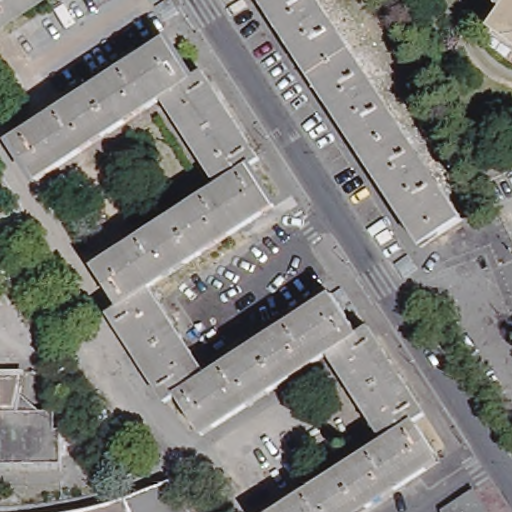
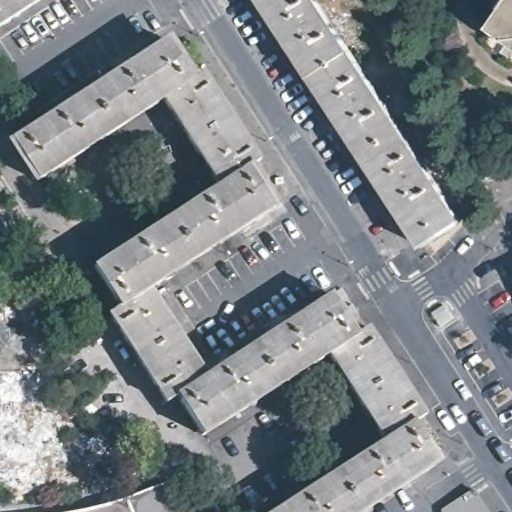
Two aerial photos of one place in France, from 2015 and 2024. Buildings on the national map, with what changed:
unchanged [(39,0),(0,26),(0,0),(39,0)]
unchanged [(428,241),(361,140),(285,25),(269,0),(324,0),(465,217),(428,241)]
unchanged [(490,21),(490,20),(490,19),(503,0),(512,0),(512,38),(490,21)]
unchanged [(265,155),(254,162),(280,201),(154,283),(211,370),(337,289),(362,328),(373,321),(430,410),(420,417),(433,437),(446,457),(368,507),(360,512),(270,512),(390,435),(333,348),(208,430),(182,390),(172,397),(114,308),(124,301),(99,261),(224,180),(168,94),(43,175),(17,135),(171,34),(197,73),(207,66),(265,155)]
demolished [(59,382),(65,391),(60,395),(54,386),(59,382)]
demolished [(1,401),(15,401),(19,401),(19,403),(55,403),(55,417),(62,417),(63,455),(2,455),(2,431),(0,431),(0,384),(1,401)]
unchanged [(442,505),(476,485),(492,512),(444,512),(442,505)]
unchanged [(102,511),(113,508),(122,505),(134,501),(147,496),(159,490),(166,487),(182,512),(98,512),(102,511)]

